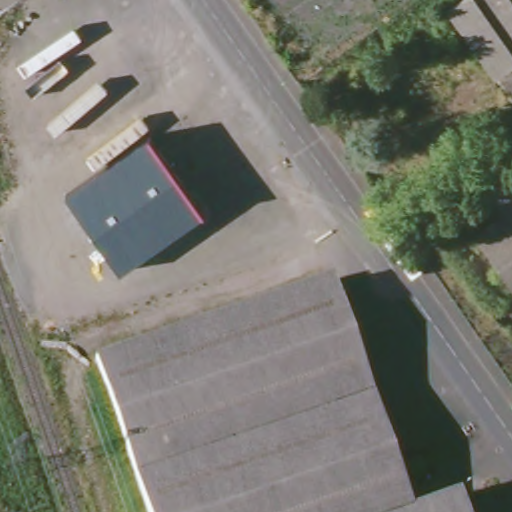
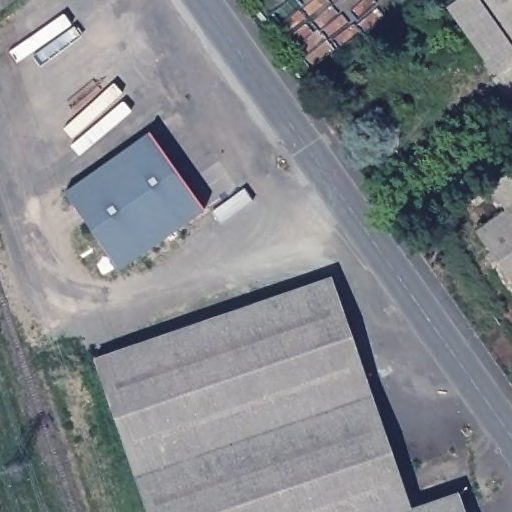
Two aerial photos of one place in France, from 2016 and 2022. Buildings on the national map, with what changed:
unchanged [(432,17),(454,0),(512,0),(512,61),(482,82),(432,17)]
unchanged [(68,193),(149,134),(203,211),(120,270),(68,193)]
unchanged [(507,180),(512,177),(512,211),(495,189),(507,180)]
unchanged [(512,213),(512,277),(482,235),(512,213)]
unchanged [(452,490),(459,512),(141,512),(89,360),(326,279),(405,506),(452,490)]

